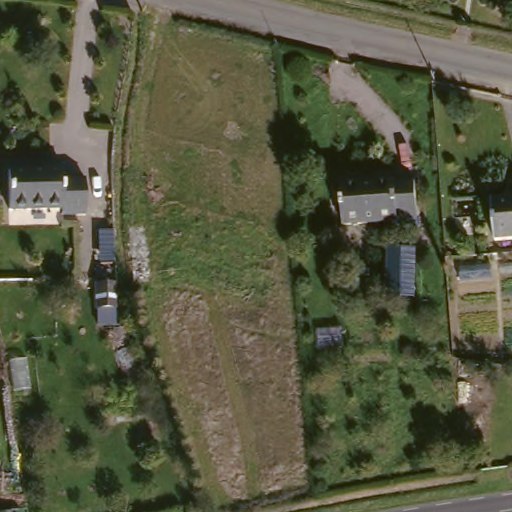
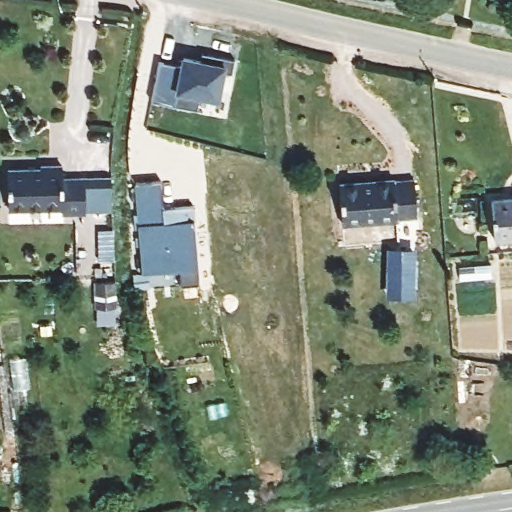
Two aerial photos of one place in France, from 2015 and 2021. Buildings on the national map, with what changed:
new [(182,57),(201,61),(204,54),(234,61),(232,73),(226,67),(220,101),(200,98),(197,111),(151,101),(159,63),(182,57)]
unchanged [(30,163),(50,162),(51,174),(72,173),(74,210),(49,210),(49,205),(0,205),(0,166),(30,165),(30,163)]
new [(111,178),(113,213),(87,213),(74,210),(72,181),(111,178)]
unchanged [(331,185),(395,180),(396,184),(412,182),(415,216),(399,217),(398,220),(332,225),(331,185)]
new [(162,182),(166,207),(192,206),(199,288),(181,289),(179,272),(149,274),(150,288),(137,289),(134,272),(141,270),(134,185),(162,182)]
unchanged [(512,199),(512,239),(492,241),(488,200),(512,199)]
demolished [(147,225),(148,255),(131,255),(130,226),(147,225)]
unchanged [(112,228),(114,257),(96,257),(95,228),(112,228)]

